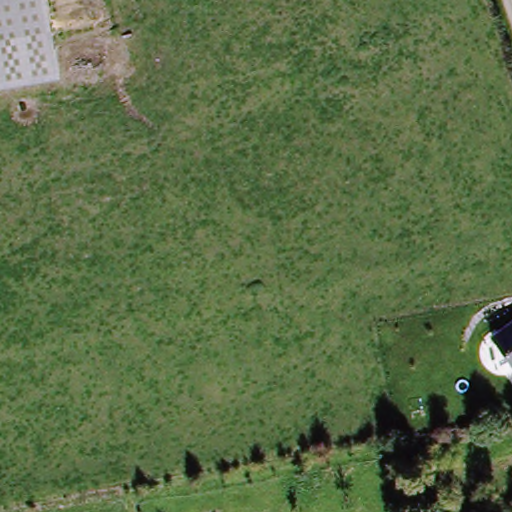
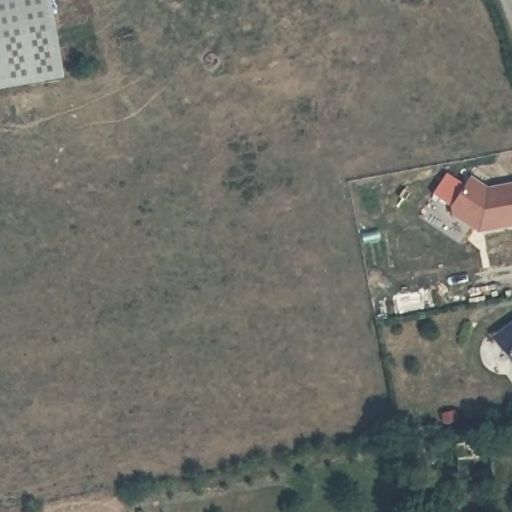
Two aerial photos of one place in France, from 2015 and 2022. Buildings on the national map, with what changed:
unchanged [(0,88),(0,0),(53,0),(66,77),(0,88)]
new [(485,188),(512,183),(512,227),(479,233),(445,211),(470,178),(485,188)]
unchanged [(512,321),(512,368),(490,339),(512,321)]

